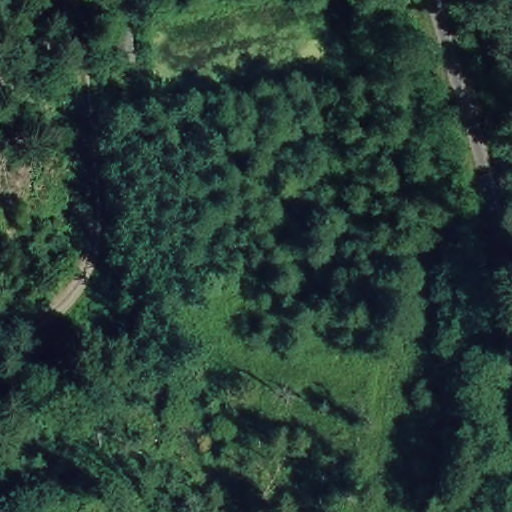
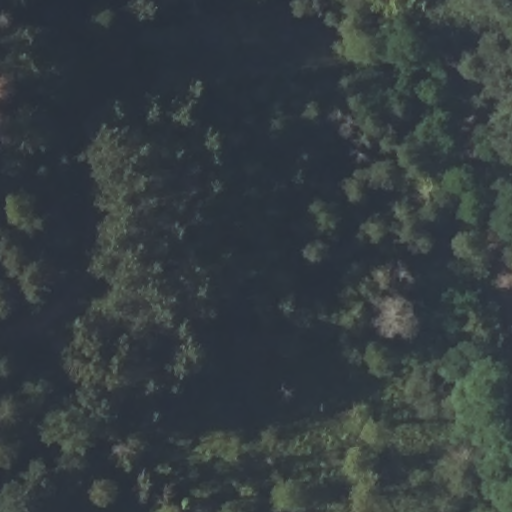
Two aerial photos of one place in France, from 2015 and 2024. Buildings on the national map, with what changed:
unchanged [(133,62),(109,65),(107,35),(131,32),(133,62)]

